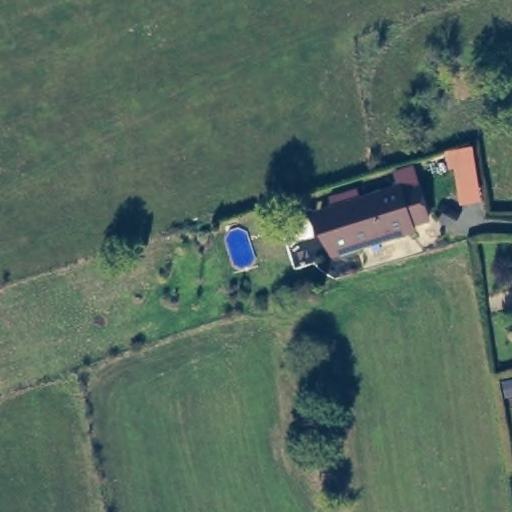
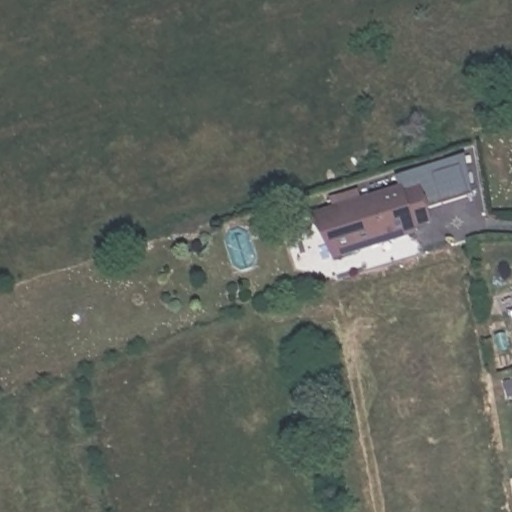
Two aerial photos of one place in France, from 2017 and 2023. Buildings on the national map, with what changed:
unchanged [(382,194),(385,201),(400,196),(410,228),(394,233),(395,239),(340,256),(327,212),(382,194)]

